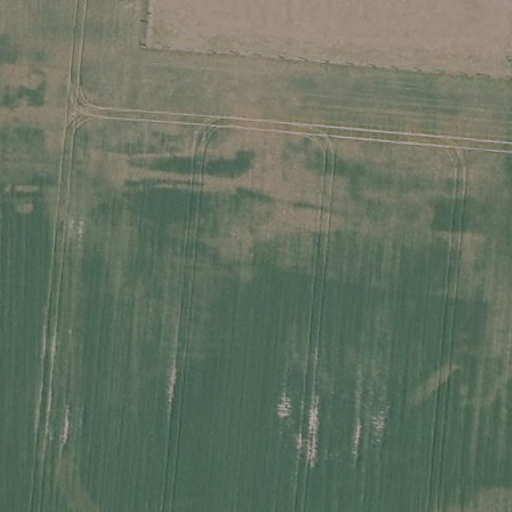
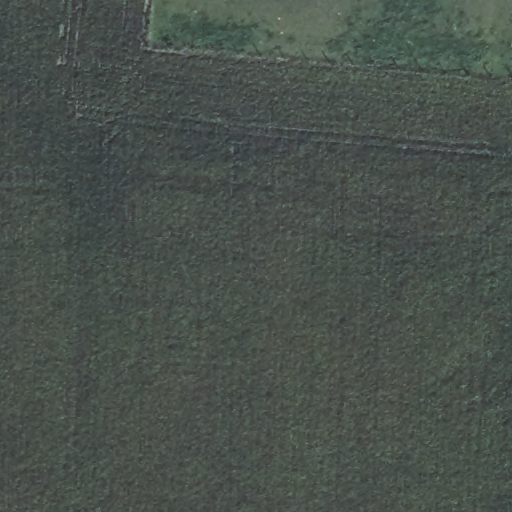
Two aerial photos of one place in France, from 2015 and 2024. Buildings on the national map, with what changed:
[]

